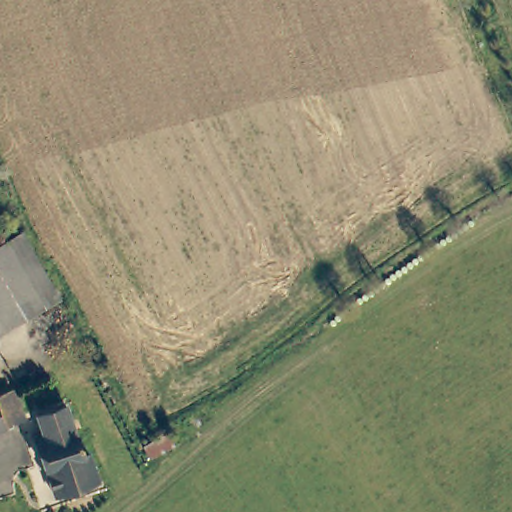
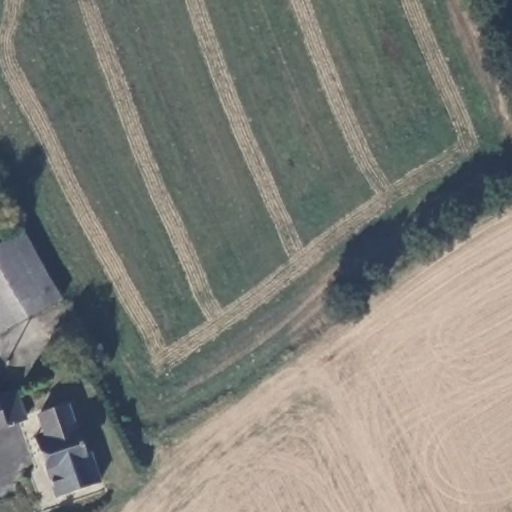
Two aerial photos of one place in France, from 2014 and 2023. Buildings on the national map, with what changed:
unchanged [(59,302),(0,333),(0,247),(23,234),(59,302)]
unchanged [(25,418),(0,426),(0,395),(14,391),(25,418)]
unchanged [(38,414),(66,406),(81,455),(89,453),(98,483),(52,497),(34,435),(43,433),(38,414)]

